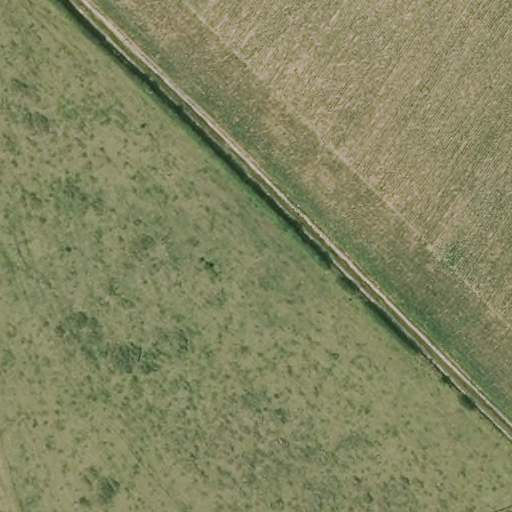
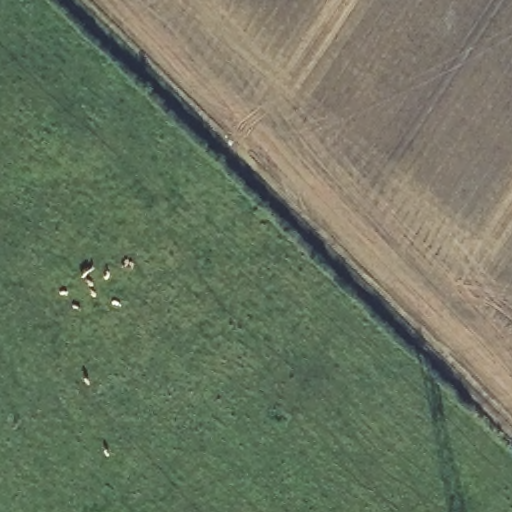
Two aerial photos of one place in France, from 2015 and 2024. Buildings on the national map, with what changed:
[]

